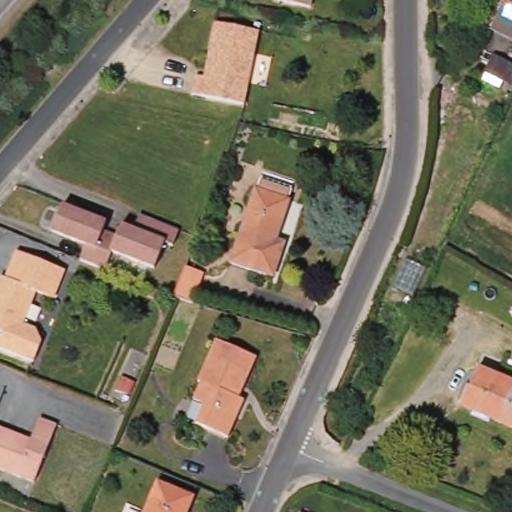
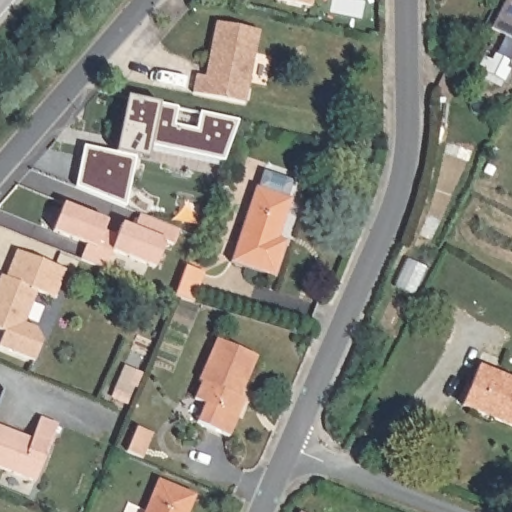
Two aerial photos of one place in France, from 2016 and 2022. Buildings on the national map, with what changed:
unchanged [(311,7),(276,0),(312,0),(311,7)]
unchanged [(505,0),(504,0),(512,0),(512,41),(490,29),(495,20),(505,0)]
unchanged [(262,27),(248,99),(196,89),(200,71),(210,73),(214,51),(210,50),(216,18),(262,27)]
new [(86,149),(119,156),(130,100),(177,110),(174,127),(196,131),(200,114),(239,122),(224,163),(150,148),(147,163),(135,160),(125,208),(75,188),(86,149)]
unchanged [(289,199),(291,200),(278,240),(287,242),(275,278),(231,263),(257,189),(259,190),(265,172),(295,182),(289,199)]
unchanged [(55,228),(66,201),(110,219),(106,227),(120,233),(125,221),(137,226),(143,211),(182,227),(176,242),(168,239),(158,265),(115,249),(114,251),(108,267),(84,257),(90,242),(55,228)]
unchanged [(10,275),(20,248),(69,267),(58,295),(40,288),(27,321),(40,326),(42,344),(35,364),(0,350),(0,344),(4,335),(0,334),(0,282),(10,275)]
unchanged [(175,293),(185,263),(204,270),(192,298),(175,293)]
unchanged [(241,394),(246,396),(230,433),(196,419),(205,400),(195,396),(203,378),(200,377),(217,335),(259,353),(241,394)]
unchanged [(512,369),(512,417),(465,396),(483,356),(512,369)]
unchanged [(31,440),(40,418),(57,424),(35,480),(0,466),(0,427),(31,440)]
unchanged [(142,512),(158,472),(195,488),(184,512),(142,512)]
unchanged [(311,512),(299,512),(300,508),(311,512)]

